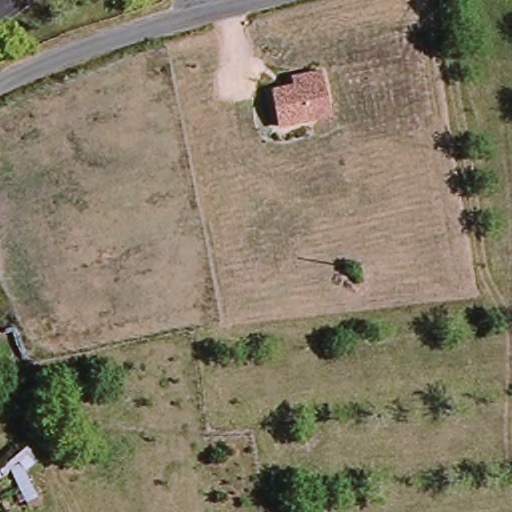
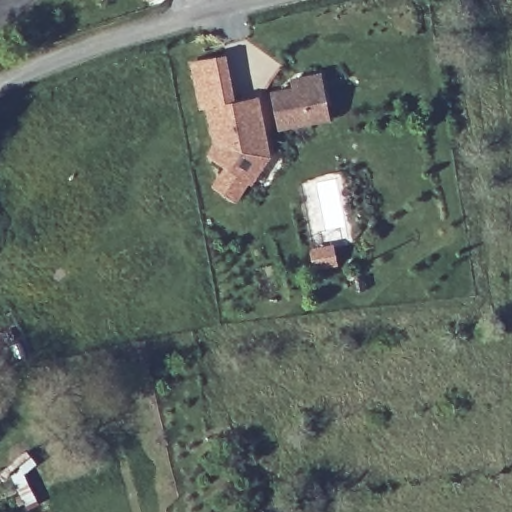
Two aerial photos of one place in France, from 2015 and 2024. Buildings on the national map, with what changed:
new [(252,186),(249,185),(236,203),(213,186),(223,166),(208,156),(214,145),(207,108),(198,110),(191,62),(227,55),(237,101),(259,97),(271,158),(252,186)]
unchanged [(334,120),(282,131),(272,91),(294,86),(292,76),(322,71),(334,120)]

